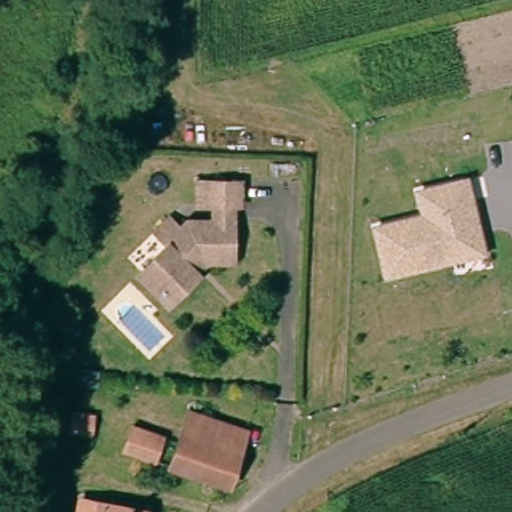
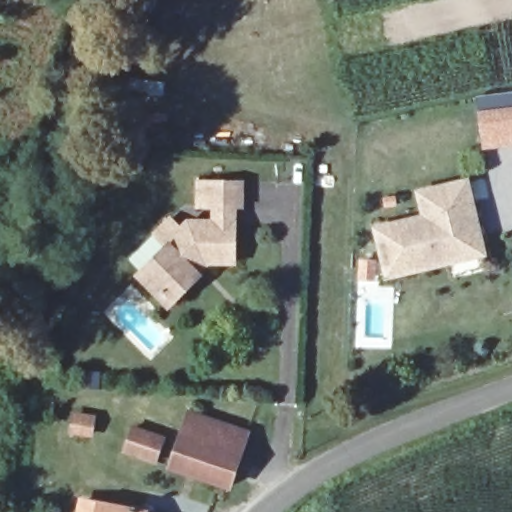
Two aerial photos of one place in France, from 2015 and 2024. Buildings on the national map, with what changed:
new [(484,150),(479,111),(512,107),(512,146),(484,150)]
unchanged [(378,230),(427,217),(421,193),(459,183),(467,181),(485,251),(468,256),(391,276),(378,230)]
unchanged [(243,184),(242,207),(207,206),(208,183),(243,184)]
unchanged [(234,264),(205,264),(196,272),(200,276),(172,303),(141,273),(169,247),(155,233),(170,219),(180,230),(188,222),(234,223),(234,264)]
unchanged [(93,387),(111,388),(110,404),(91,403),(93,387)]
unchanged [(64,416),(95,421),(93,438),(60,432),(64,416)]
unchanged [(244,442),(237,460),(184,438),(192,422),(244,442)]
unchanged [(151,463),(120,451),(129,428),(160,442),(151,463)]
unchanged [(237,460),(225,491),(170,469),(179,449),(184,438),(237,460)]
unchanged [(88,501),(104,504),(149,510),(148,512),(86,512),(88,501)]

